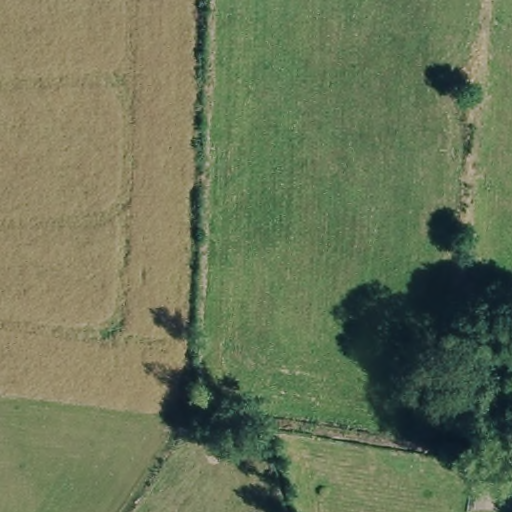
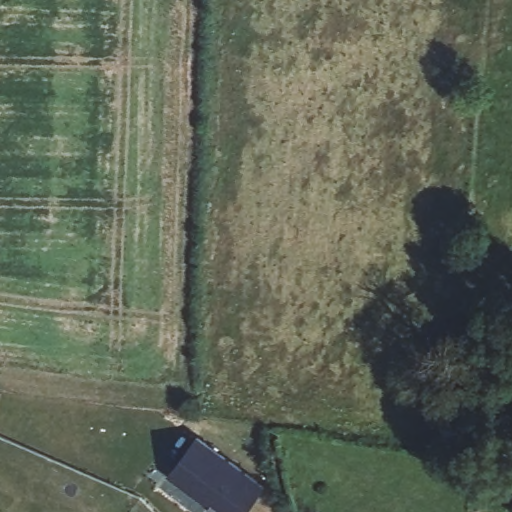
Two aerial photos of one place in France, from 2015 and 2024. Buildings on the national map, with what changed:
new [(247,512),(224,512),(171,473),(198,434),(267,485),(247,512)]

